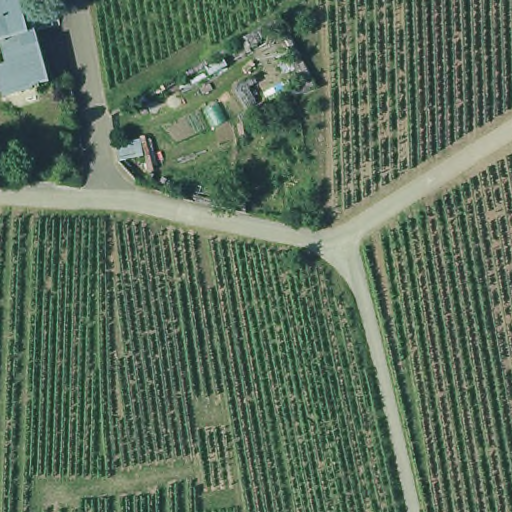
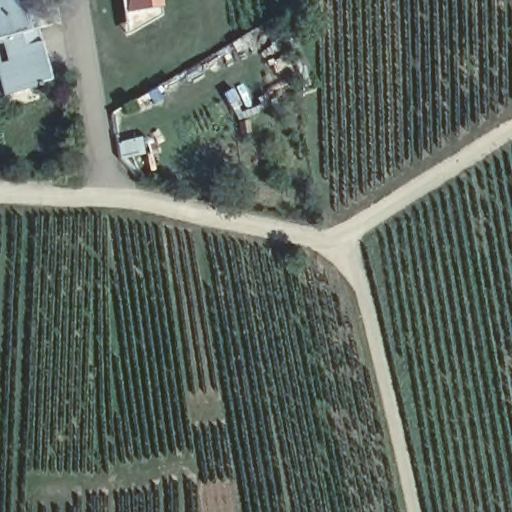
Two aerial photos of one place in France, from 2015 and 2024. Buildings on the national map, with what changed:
unchanged [(0,0),(23,0),(30,30),(38,28),(51,79),(18,87),(6,91),(0,66),(0,0)]
new [(163,14),(128,36),(122,0),(161,0),(163,14)]

